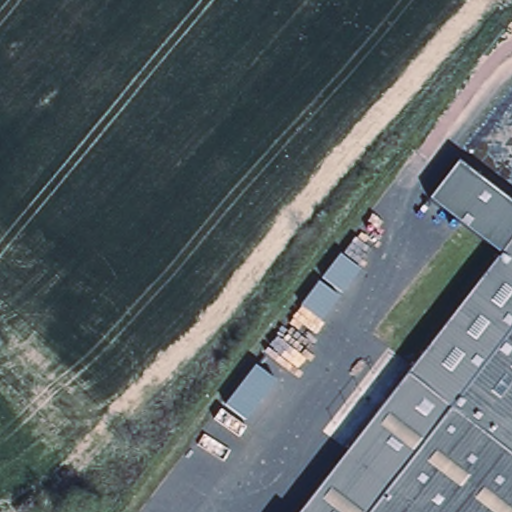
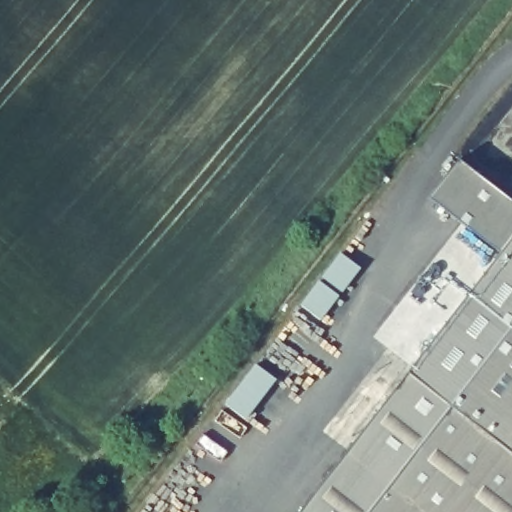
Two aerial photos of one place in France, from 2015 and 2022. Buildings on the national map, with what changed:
unchanged [(512,201),(512,260),(503,252),(432,195),(462,159),(512,201)]
unchanged [(409,374),(434,342),(503,252),(512,260),(512,328),(369,512),(300,512),(409,374)]
unchanged [(512,328),(512,512),(369,512),(512,328)]

